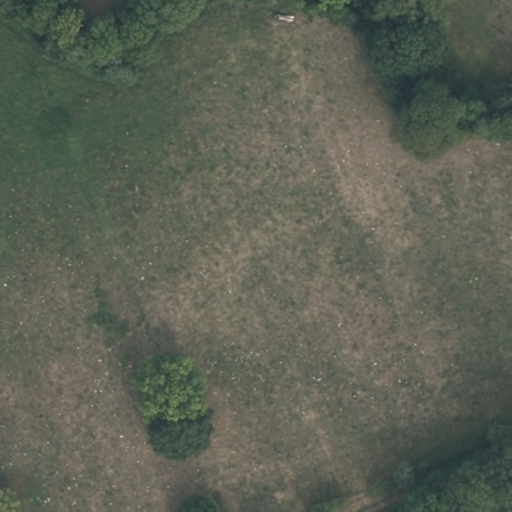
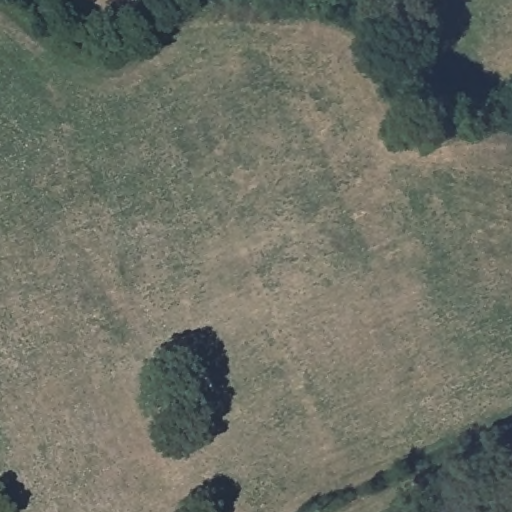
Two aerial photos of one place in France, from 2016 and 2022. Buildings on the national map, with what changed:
[]

